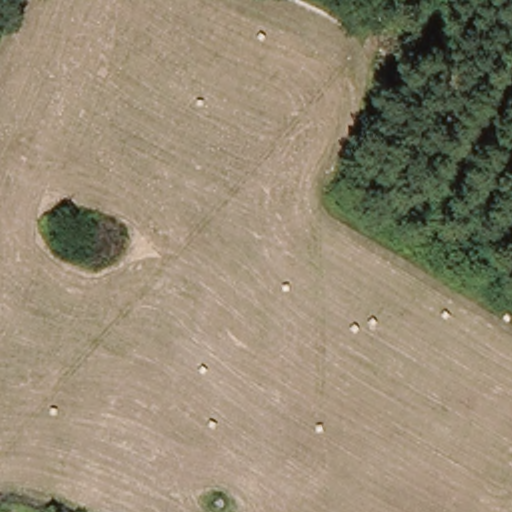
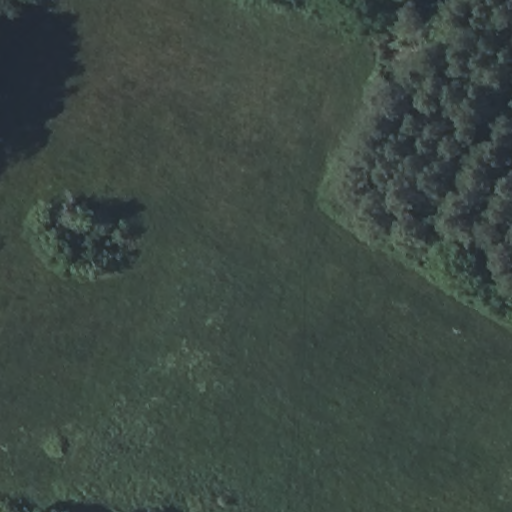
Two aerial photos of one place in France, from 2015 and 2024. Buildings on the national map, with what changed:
[]

